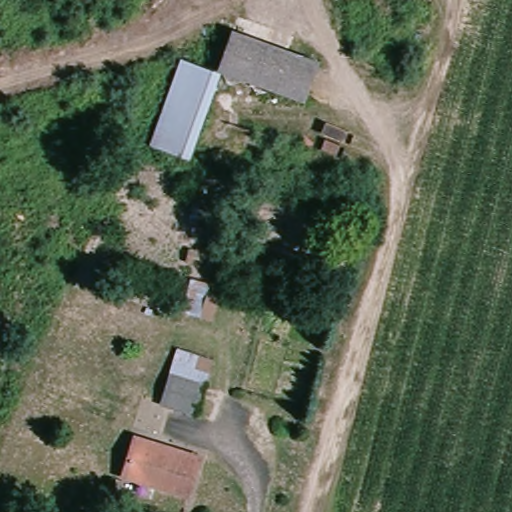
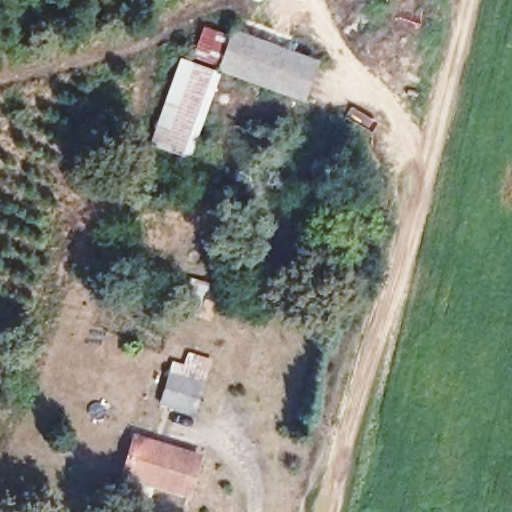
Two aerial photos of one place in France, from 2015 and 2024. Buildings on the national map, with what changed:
unchanged [(315,54),(303,94),(217,67),(227,27),(315,54)]
unchanged [(177,71),(214,80),(192,161),(154,153),(177,71)]
unchanged [(210,365),(200,408),(159,399),(171,354),(210,365)]
unchanged [(199,452),(187,493),(117,473),(131,435),(199,452)]

